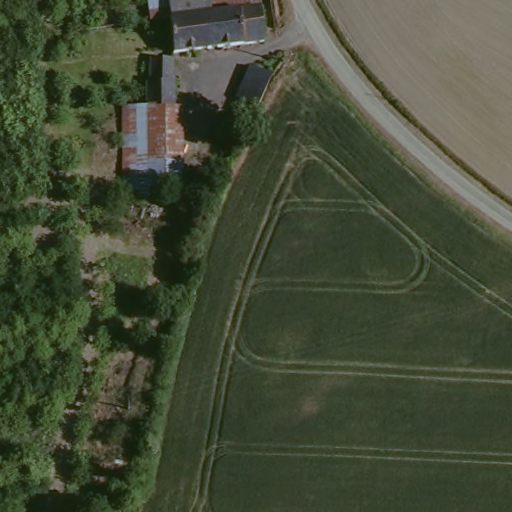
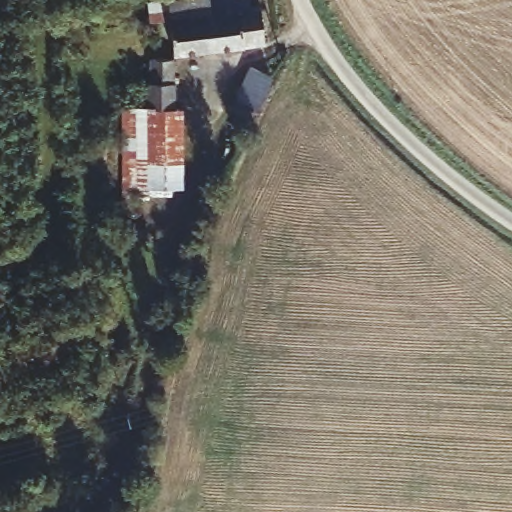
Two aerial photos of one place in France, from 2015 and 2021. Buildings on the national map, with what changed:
unchanged [(172,51),(169,36),(169,23),(148,26),(146,11),(145,6),(152,4),(167,3),(169,0),(206,0),(207,18),(207,48),(172,51)]
unchanged [(258,15),(207,18),(206,0),(256,0),(258,15)]
unchanged [(260,46),(207,48),(207,18),(258,15),(260,46)]
unchanged [(143,88),(149,87),(147,58),(156,57),(166,56),(170,106),(145,109),(143,88)]
unchanged [(269,79),(254,114),(232,106),(248,70),(269,79)]
unchanged [(145,109),(170,106),(177,105),(187,182),(152,187),(145,109)]
unchanged [(121,164),(117,113),(140,109),(145,109),(152,187),(153,197),(134,200),(126,202),(121,164)]
unchanged [(125,485),(89,512),(26,512),(25,512),(102,455),(125,485)]

